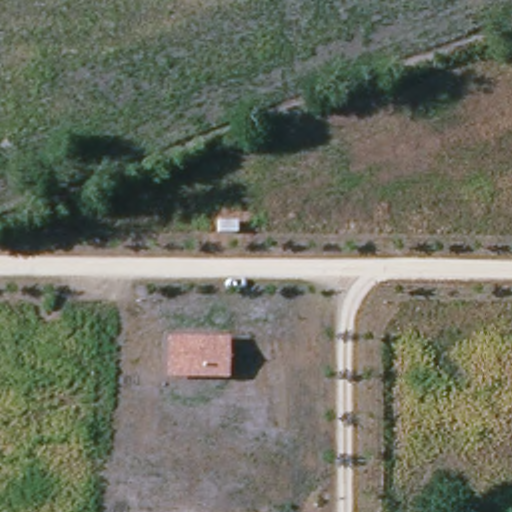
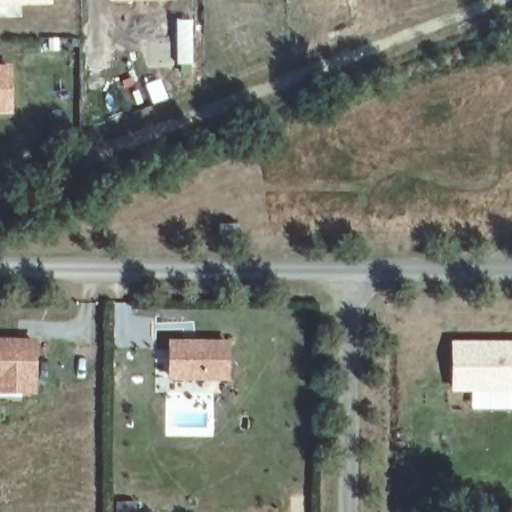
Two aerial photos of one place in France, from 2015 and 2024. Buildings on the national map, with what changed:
new [(0,6),(0,0),(52,0),(52,5),(0,6)]
new [(107,1),(107,0),(176,0),(107,1)]
new [(192,18),(193,65),(176,65),(175,18),(192,18)]
new [(0,66),(11,66),(12,113),(0,114),(0,66)]
unchanged [(169,378),(170,337),(230,339),(229,380),(169,378)]
new [(0,338),(36,338),(37,393),(0,393),(0,338)]
new [(450,339),(512,340),(512,409),(470,409),(470,392),(450,392),(450,339)]

